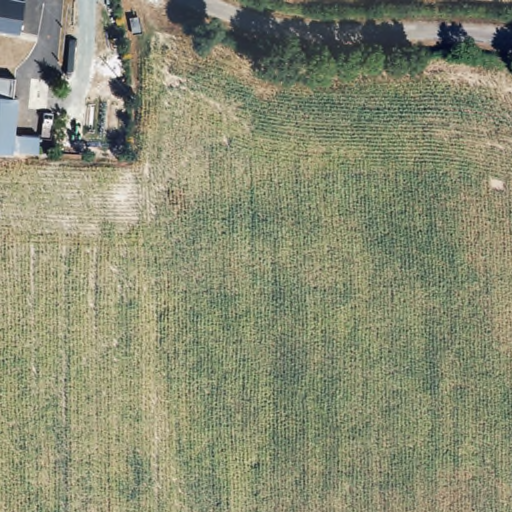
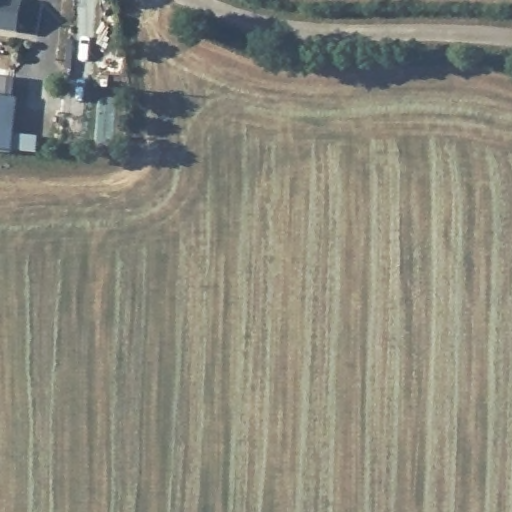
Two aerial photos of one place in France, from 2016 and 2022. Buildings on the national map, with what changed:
unchanged [(0,31),(0,0),(16,0),(21,0),(17,33),(0,31)]
unchanged [(0,155),(0,99),(16,101),(11,156),(0,155)]
unchanged [(12,154),(14,138),(39,140),(37,156),(12,154)]

